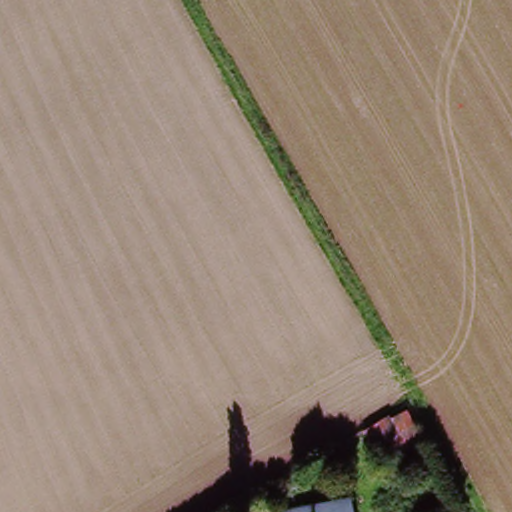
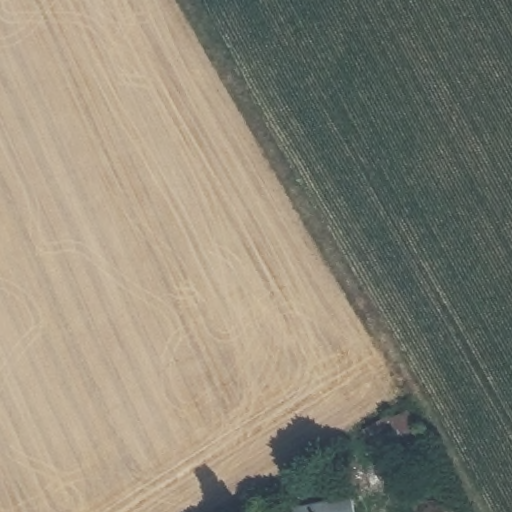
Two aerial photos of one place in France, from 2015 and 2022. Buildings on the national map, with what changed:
unchanged [(361,429),(409,410),(421,442),(378,461),(361,429)]
unchanged [(351,512),(282,512),(347,495),(351,512)]

